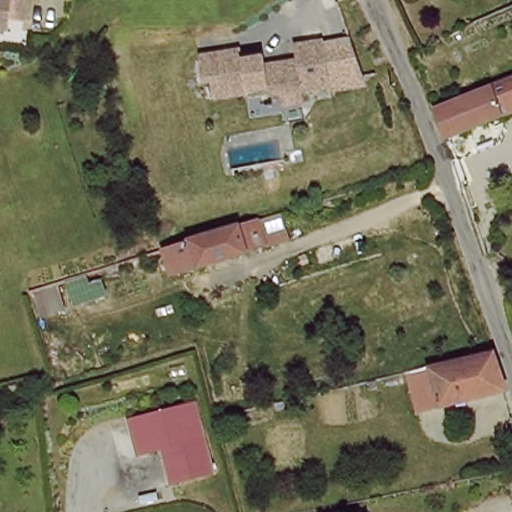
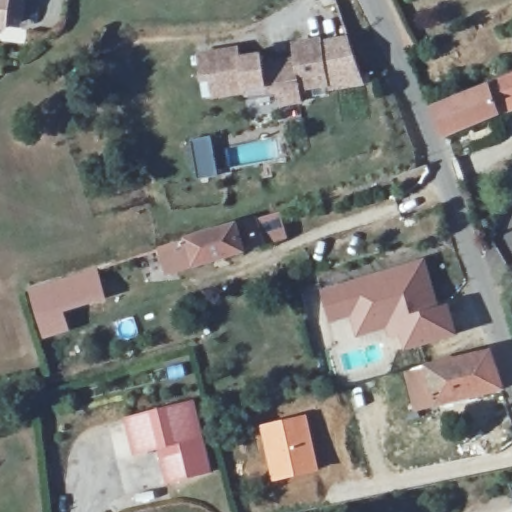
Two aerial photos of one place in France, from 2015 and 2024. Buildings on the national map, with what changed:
unchanged [(20,6),(17,16),(8,14),(6,24),(0,23),(0,0),(20,0),(20,6)]
unchanged [(214,100),(212,82),(204,84),(200,58),(243,52),(244,62),(266,59),(267,68),(271,68),(299,63),(297,48),(327,44),(333,89),(304,93),(306,106),(288,108),(284,109),(283,96),(283,95),(282,95),(249,100),(248,96),(214,100)]
unchanged [(500,114),(445,137),(441,128),(432,107),(512,76),(512,113),(502,116),(500,114)]
new [(211,136),(218,176),(198,180),(190,140),(211,136)]
unchanged [(245,223),(269,216),(274,235),(277,243),(253,251),(185,272),(177,244),(198,238),(245,223)]
new [(425,262),(439,308),(450,304),(460,336),(406,354),(400,338),(392,342),(388,331),(358,340),(351,319),(331,326),(321,291),(425,262)]
unchanged [(56,283),(62,302),(37,310),(31,291),(56,283)]
unchanged [(416,411),(404,372),(417,369),(490,351),(492,350),(504,390),(502,391),(416,411)]
unchanged [(207,472),(165,482),(157,448),(132,454),(123,419),(189,402),(207,472)]
new [(306,413),(320,471),(272,483),(258,425),(306,413)]

